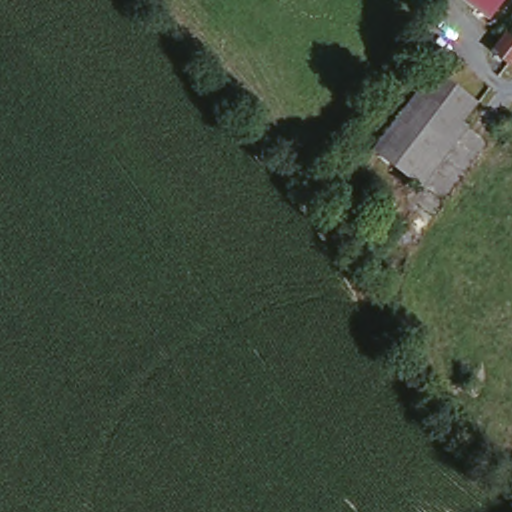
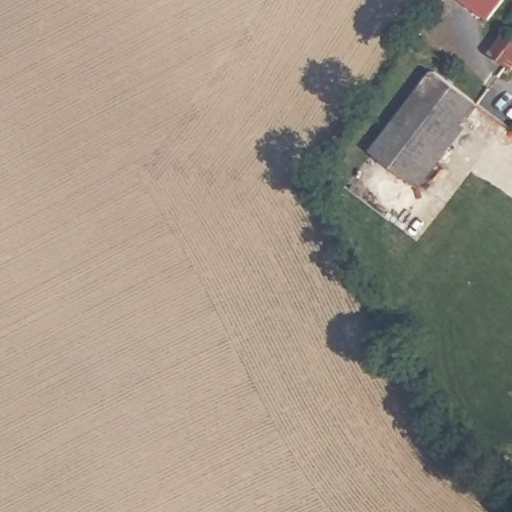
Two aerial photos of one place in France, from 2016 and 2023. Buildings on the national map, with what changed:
unchanged [(468,0),(502,0),(491,16),(468,0)]
unchanged [(512,28),(512,60),(497,50),(512,28)]
unchanged [(416,180),(373,151),(434,66),(477,94),(416,180)]

